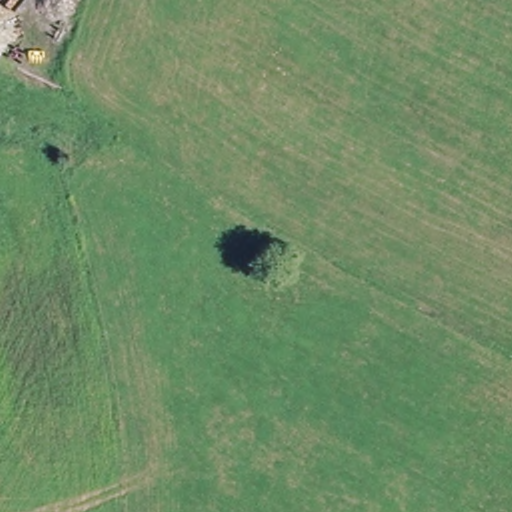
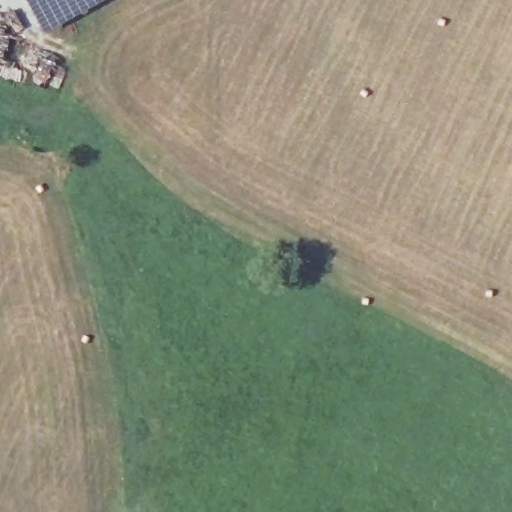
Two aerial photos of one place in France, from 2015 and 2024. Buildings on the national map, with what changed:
new [(44,31),(27,0),(99,0),(44,31)]

